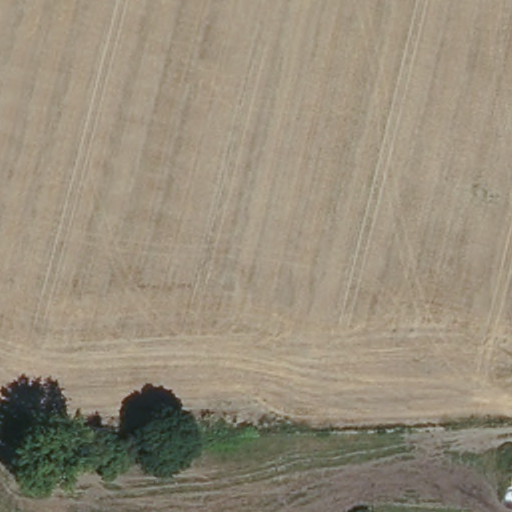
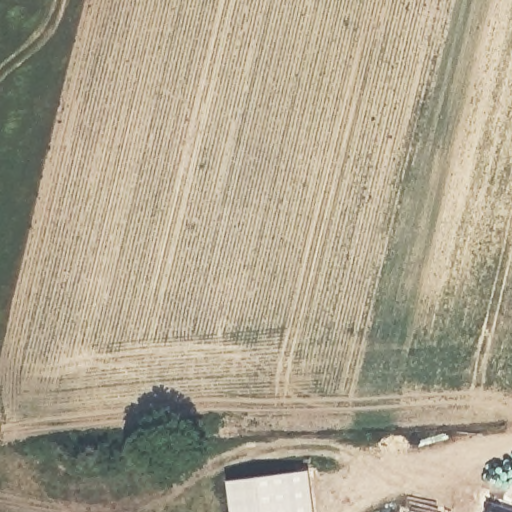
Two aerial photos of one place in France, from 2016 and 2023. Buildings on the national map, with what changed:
new [(308,473),(313,512),(232,512),(228,483),(308,473)]

